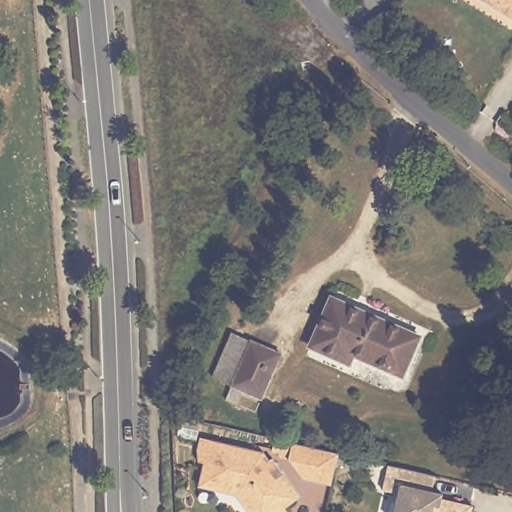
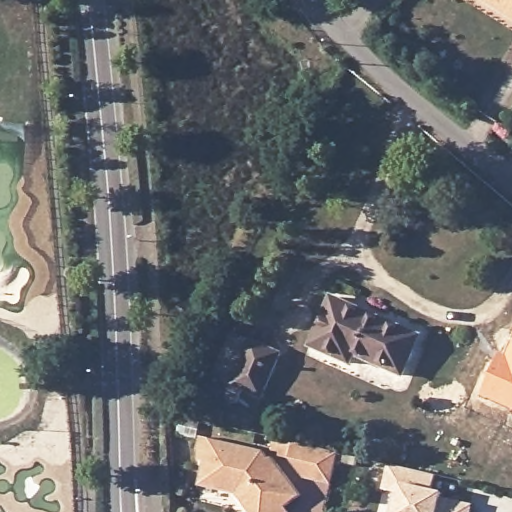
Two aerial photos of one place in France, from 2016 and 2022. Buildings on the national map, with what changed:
unchanged [(481,0),(512,0),(512,20),(481,0)]
unchanged [(353,355),(349,364),(310,347),(331,299),(420,337),(403,377),(353,355)]
unchanged [(280,350),(261,393),(242,386),(236,400),(226,395),(231,381),(212,372),(231,329),(280,350)]
new [(499,351),(507,354),(512,341),(512,409),(480,394),(499,351)]
unchanged [(250,512),(236,493),(217,488),(198,483),(199,478),(204,460),(196,458),(195,444),(198,434),(260,449),(267,456),(269,454),(299,491),(284,502),(289,508),(283,512),(250,512)]
unchanged [(304,475),(288,455),(291,439),(337,449),(330,481),(304,475)]
unchanged [(383,485),(388,461),(424,469),(436,471),(433,486),(443,488),(442,495),(472,502),(469,512),(393,512),(398,489),(383,485)]

